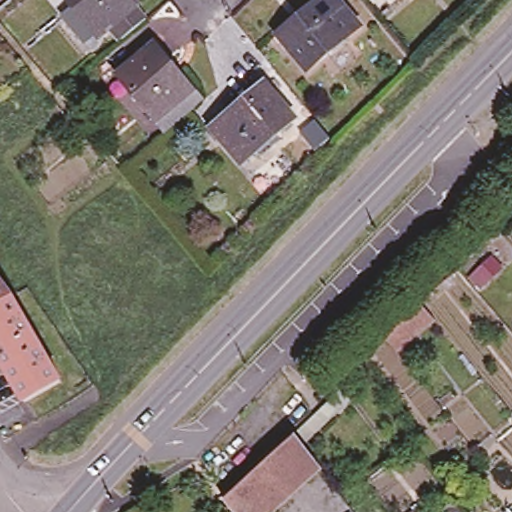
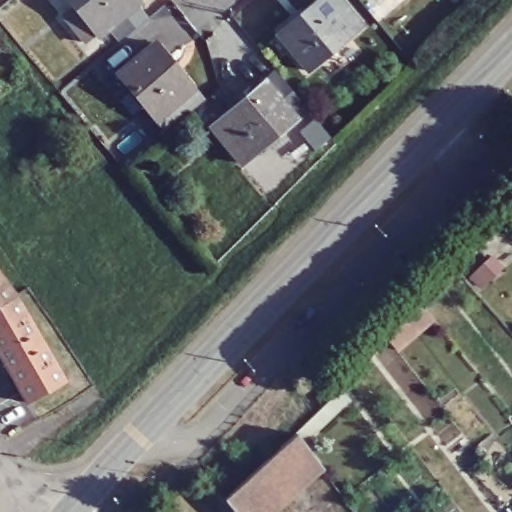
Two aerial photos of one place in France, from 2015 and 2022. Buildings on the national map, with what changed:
unchanged [(140,17),(116,37),(105,25),(95,33),(91,30),(80,40),(58,13),(69,4),(65,0),(118,0),(125,9),(130,6),(140,17)]
unchanged [(303,68),(273,31),(310,0),(337,0),(357,24),(303,68)]
unchanged [(197,99),(161,130),(151,118),(114,74),(150,43),(166,62),(162,66),(182,91),(186,88),(197,99)]
unchanged [(291,116),(239,162),(209,126),(232,105),(228,99),(255,75),(291,116)]
unchanged [(0,285),(5,292),(0,296),(0,285)]
unchanged [(19,399),(0,367),(0,296),(5,292),(55,378),(19,399)]
unchanged [(398,351),(381,332),(418,301),(436,320),(398,351)]
unchanged [(267,512),(234,512),(222,497),(292,431),(315,410),(317,408),(320,406),(335,391),(345,400),(326,417),(322,420),(300,440),(318,465),(267,512)]

